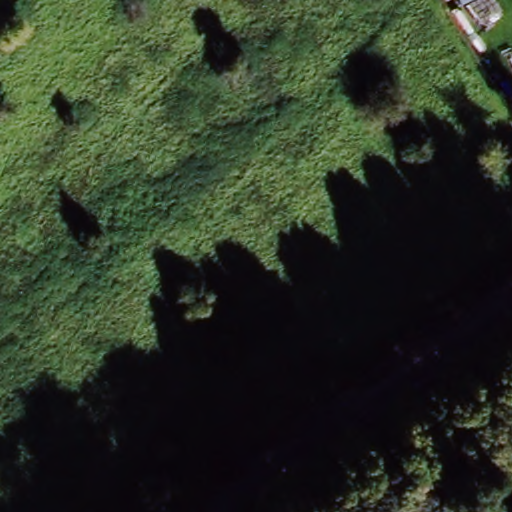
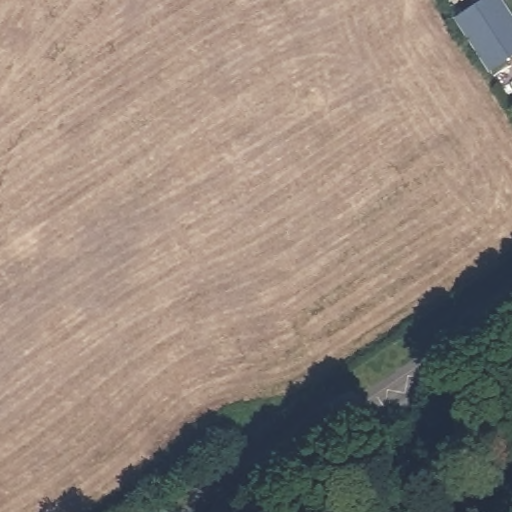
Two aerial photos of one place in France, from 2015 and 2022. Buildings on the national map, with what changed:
new [(488,74),(453,19),(484,0),(500,0),(512,18),(512,58),(488,74)]

